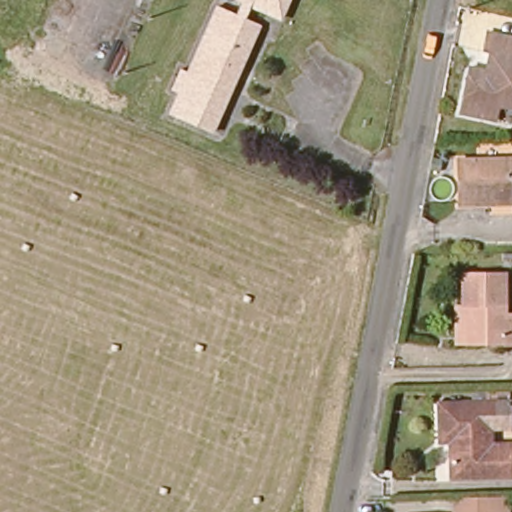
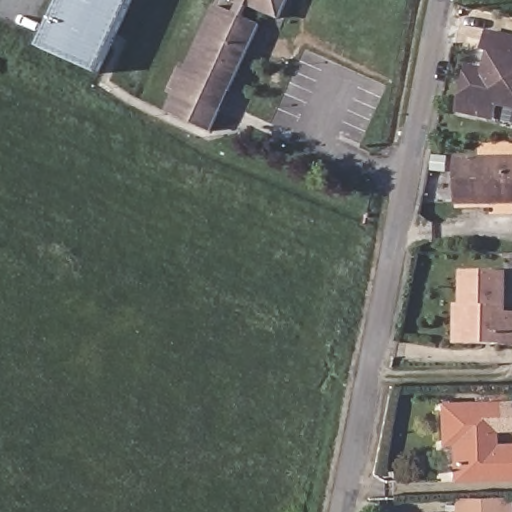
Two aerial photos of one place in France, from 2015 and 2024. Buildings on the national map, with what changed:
new [(64,0),(131,0),(98,75),(42,50),(64,0)]
unchanged [(243,6),(237,3),(239,0),(288,0),(278,21),(252,10),(245,24),(259,32),(211,140),(168,121),(176,101),(169,98),(180,74),(187,77),(216,13),(236,22),(243,6)]
unchanged [(500,127),(463,118),(472,77),(492,80),(495,61),(485,59),(489,39),(512,43),(512,113),(504,111),(500,127)]
unchanged [(512,203),(459,205),(458,163),(512,160),(512,203)]
unchanged [(466,306),(466,274),(505,273),(506,315),(512,315),(512,346),(467,346),(458,346),(458,307),(466,306)]
unchanged [(453,446),(441,446),(442,407),(495,406),(495,449),(512,449),(512,480),(453,481),(453,446)]
unchanged [(475,503),(475,512),(447,512),(446,503),(475,503)]
unchanged [(509,503),(509,512),(475,512),(475,503),(509,503)]

